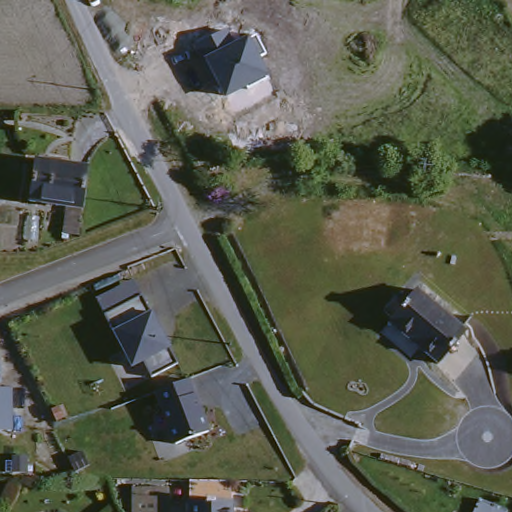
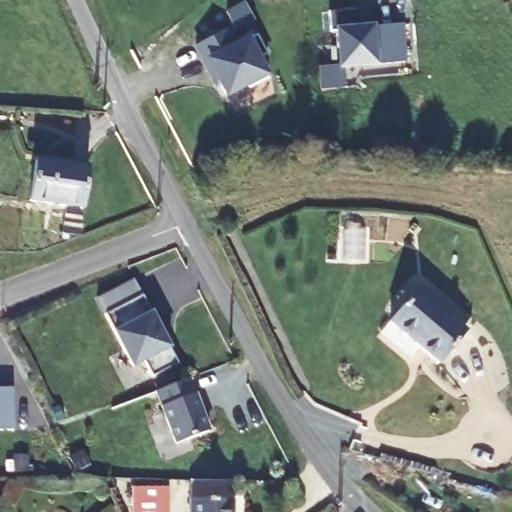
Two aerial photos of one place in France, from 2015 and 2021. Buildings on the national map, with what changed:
new [(332,27),(331,12),(355,9),(357,24),(377,22),(377,29),(404,25),(406,61),(380,65),(380,68),(335,72),(332,27)]
unchanged [(204,57),(206,56),(199,41),(228,28),(235,42),(249,35),(250,39),(256,35),(265,53),(259,56),(270,75),(266,76),(266,79),(248,88),(247,86),(225,98),(204,57)]
unchanged [(76,206),(27,200),(33,155),(84,163),(76,206)]
unchanged [(74,215),(71,233),(44,229),(47,211),(74,215)]
unchanged [(134,277),(152,311),(169,346),(175,360),(151,372),(145,360),(131,366),(113,332),(96,295),(134,277)]
unchanged [(417,291),(464,338),(434,367),(386,320),(417,291)]
unchanged [(191,375),(209,428),(175,443),(157,390),(191,375)]
unchanged [(0,430),(0,386),(11,386),(12,430),(0,430)]
unchanged [(154,480),(153,512),(118,512),(119,480),(154,480)]
unchanged [(225,512),(180,512),(181,484),(226,483),(225,512)]

